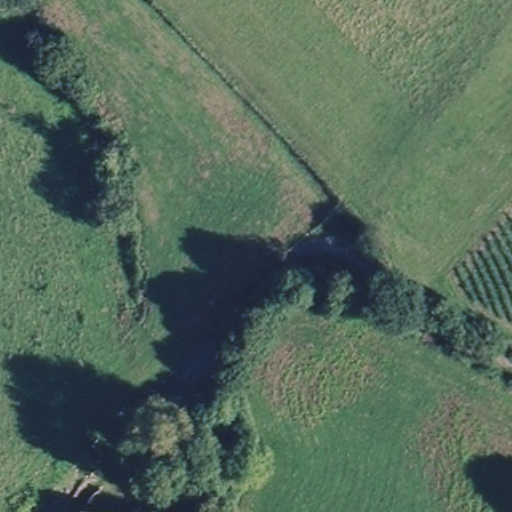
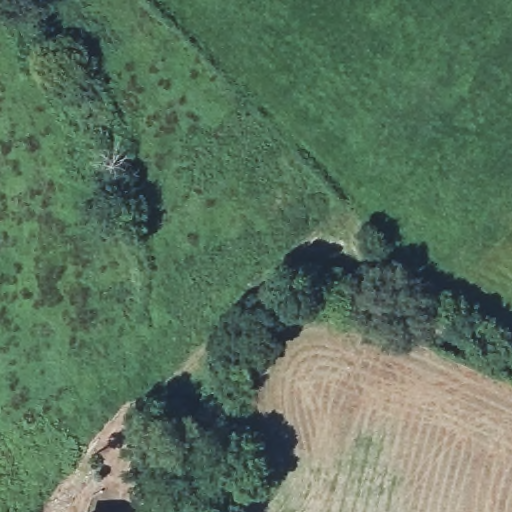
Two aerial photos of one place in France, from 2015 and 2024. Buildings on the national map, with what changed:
unchanged [(229,482),(216,512),(166,512),(186,463),(229,482)]
unchanged [(75,511),(79,512),(74,512),(75,511)]

